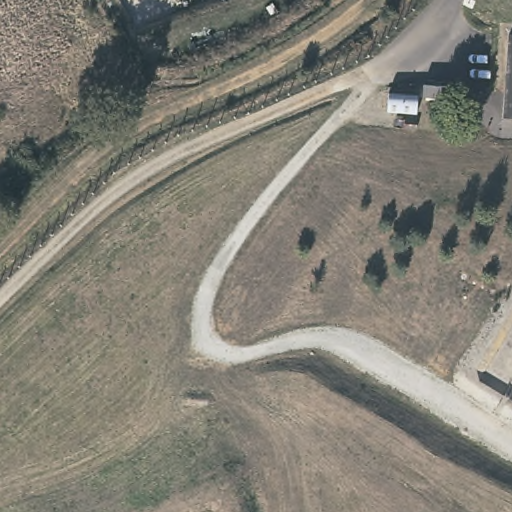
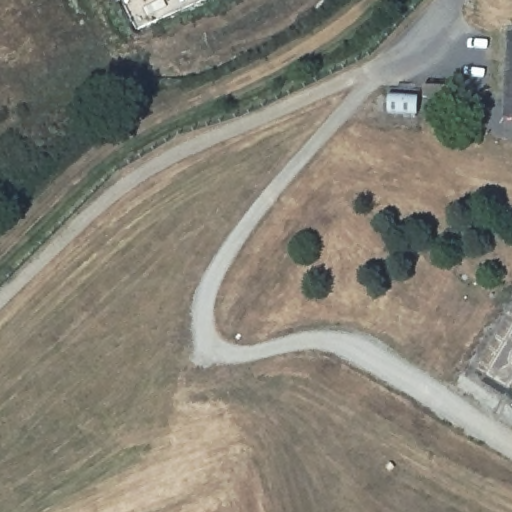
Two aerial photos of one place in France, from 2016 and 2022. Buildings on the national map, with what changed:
unchanged [(512,35),(512,122),(500,121),(504,34),(512,35)]

